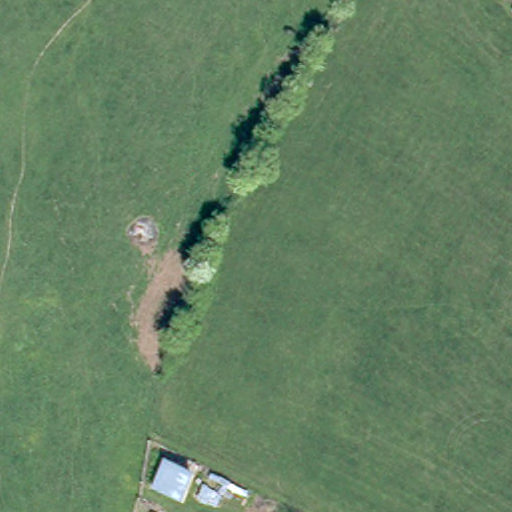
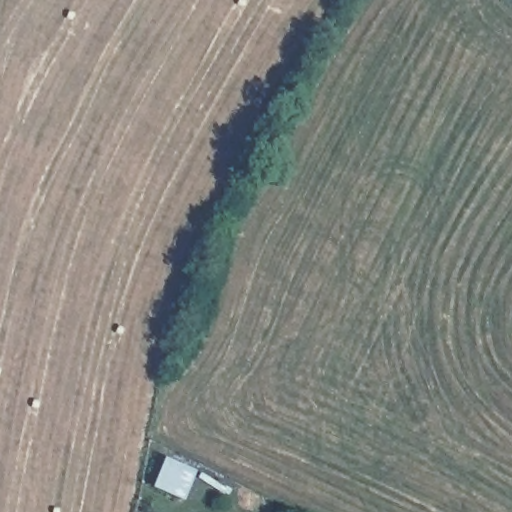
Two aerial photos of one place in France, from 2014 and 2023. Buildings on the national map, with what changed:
unchanged [(162,454),(196,469),(182,503),(147,489),(162,454)]

